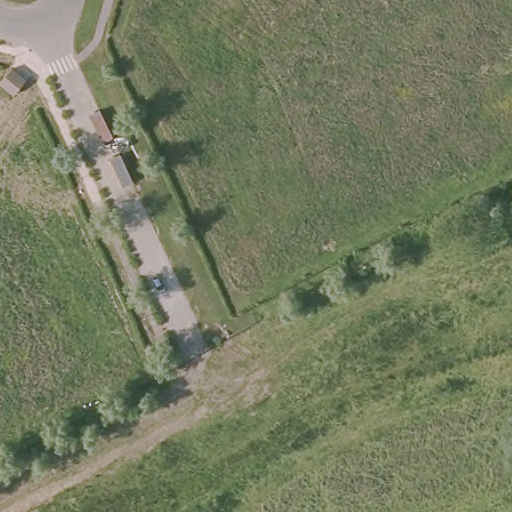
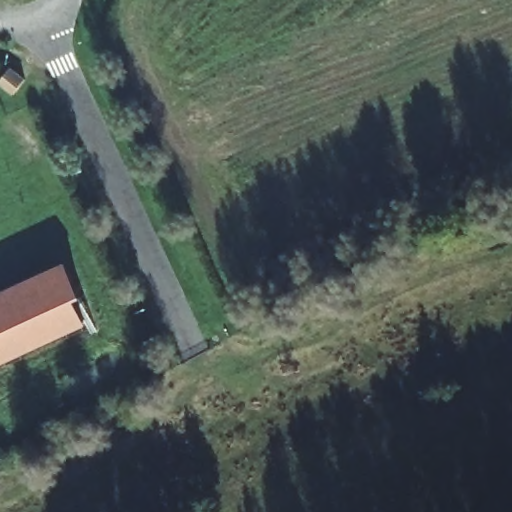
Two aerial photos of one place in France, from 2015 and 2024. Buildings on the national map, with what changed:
unchanged [(25,86),(8,76),(18,60),(34,70),(25,86)]
new [(0,366),(0,293),(62,267),(90,326),(0,366)]

